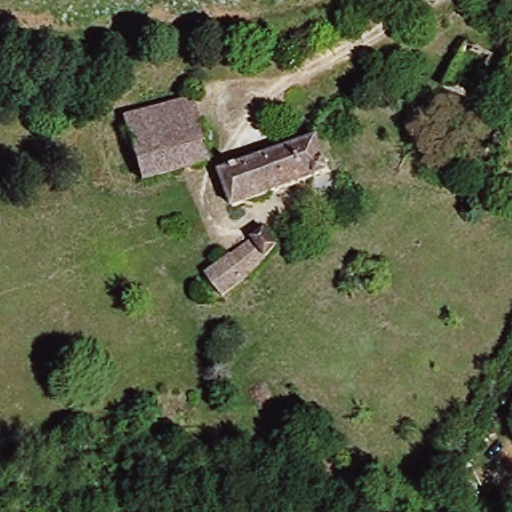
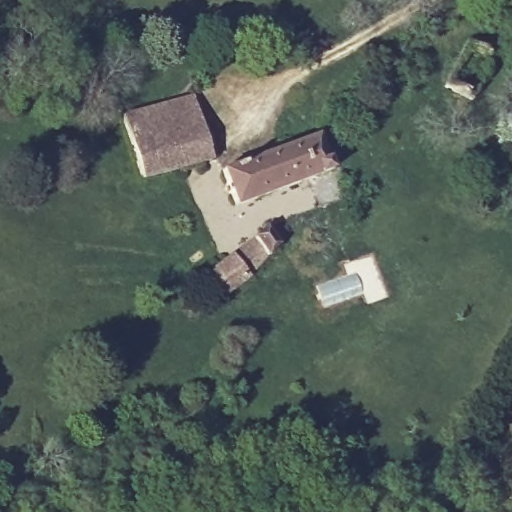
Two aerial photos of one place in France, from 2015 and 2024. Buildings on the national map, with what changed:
unchanged [(125,114),(150,107),(195,95),(197,107),(201,122),(133,142),(125,114)]
unchanged [(201,122),(212,165),(144,184),(133,142),(201,122)]
unchanged [(319,135),(331,168),(233,204),(222,172),(319,135)]
unchanged [(267,228),(282,256),(222,292),(209,264),(267,228)]

